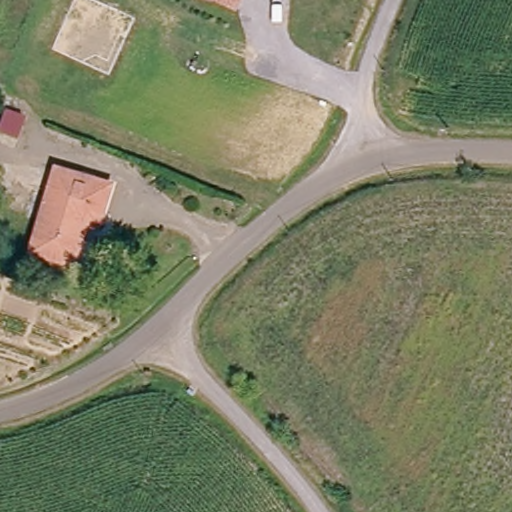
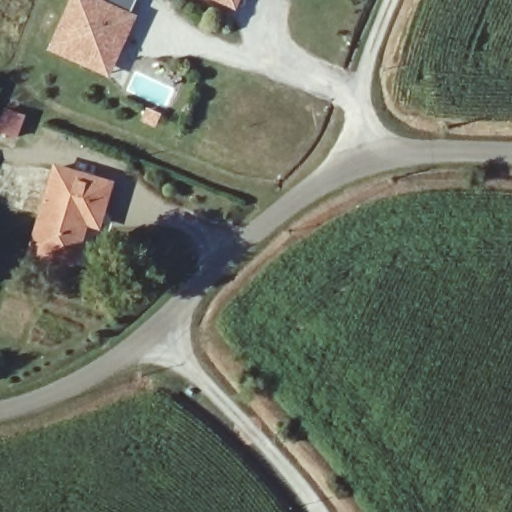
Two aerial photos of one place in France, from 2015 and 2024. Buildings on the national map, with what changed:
new [(46,49),(69,0),(104,0),(138,15),(111,77),(46,49)]
unchanged [(214,0),(241,0),(236,11),(214,0)]
unchanged [(0,144),(0,116),(8,96),(23,102),(20,109),(29,114),(16,151),(0,144)]
unchanged [(24,255),(49,174),(101,191),(89,231),(78,228),(65,267),(24,255)]

